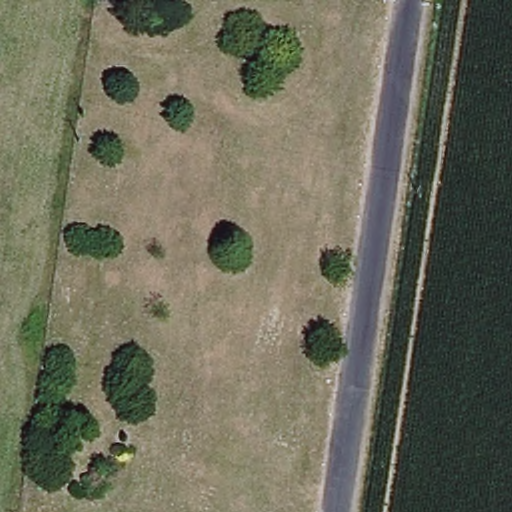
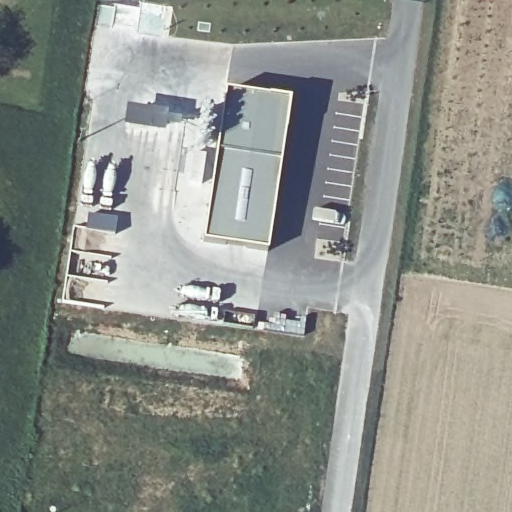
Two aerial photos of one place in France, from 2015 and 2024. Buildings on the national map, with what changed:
new [(212,167),(225,90),(292,100),(269,253),(202,242),(212,167)]

